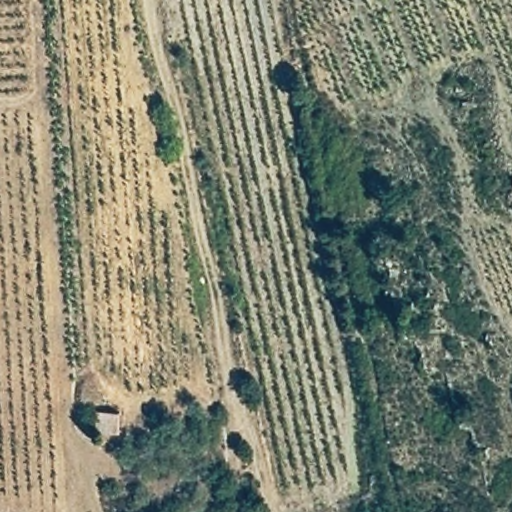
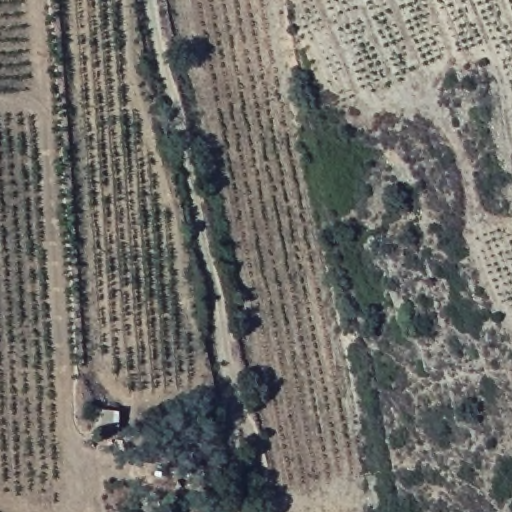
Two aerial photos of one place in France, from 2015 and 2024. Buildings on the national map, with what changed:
unchanged [(120,411),(116,444),(89,440),(94,410),(120,411)]

